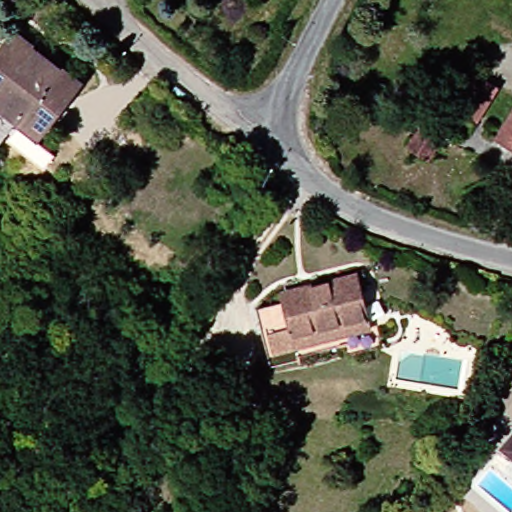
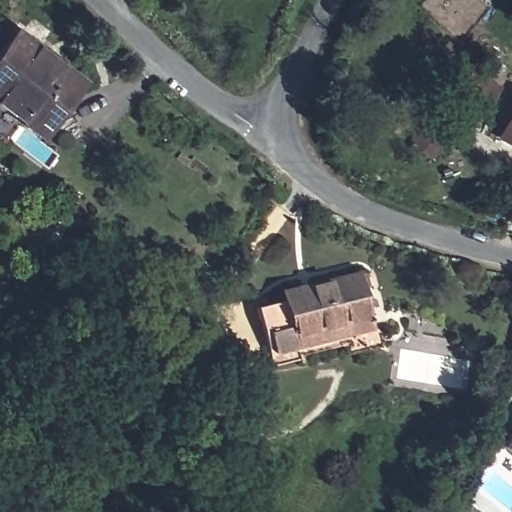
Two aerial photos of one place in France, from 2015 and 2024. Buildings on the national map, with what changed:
unchanged [(80,79),(39,132),(18,115),(0,138),(0,44),(15,26),(80,79)]
unchanged [(492,97),(474,127),(448,112),(466,81),(492,97)]
unchanged [(496,142),(512,115),(512,152),(496,142)]
unchanged [(429,147),(418,163),(401,150),(412,135),(429,147)]
unchanged [(269,361),(264,340),(259,341),(252,317),(281,310),(279,300),(357,281),(360,292),(355,301),(364,337),(269,361)]
unchanged [(511,428),(512,427),(512,428),(511,428)]
unchanged [(500,450),(512,436),(512,460),(500,450)]

